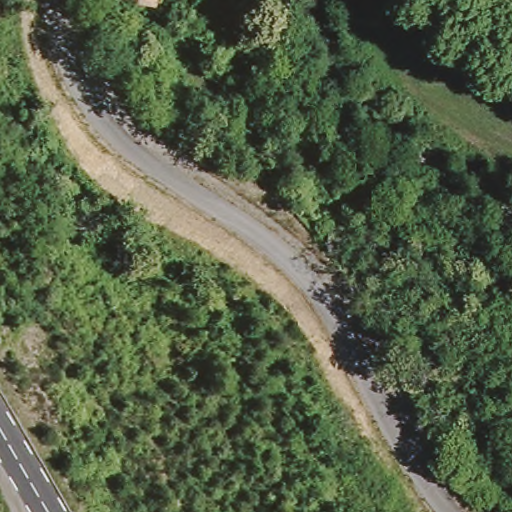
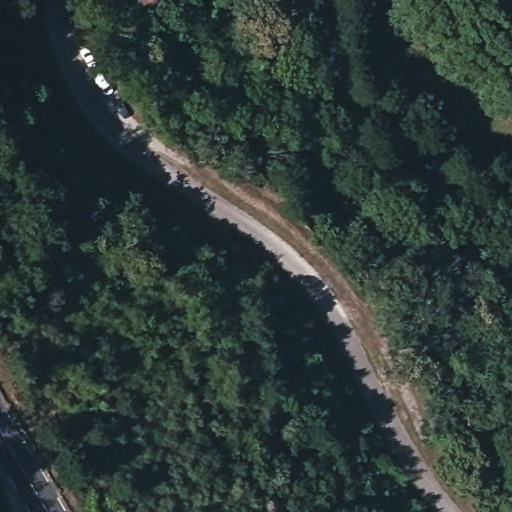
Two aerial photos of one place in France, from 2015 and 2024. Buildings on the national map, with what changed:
unchanged [(121,11),(123,0),(156,0),(154,16),(121,11)]
unchanged [(173,33),(216,80),(204,91),(160,45),(173,33)]

